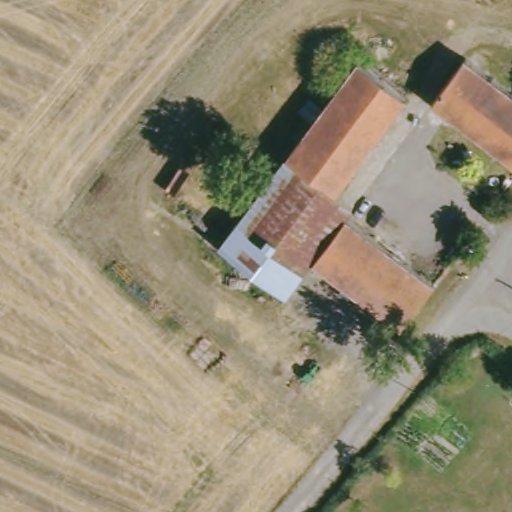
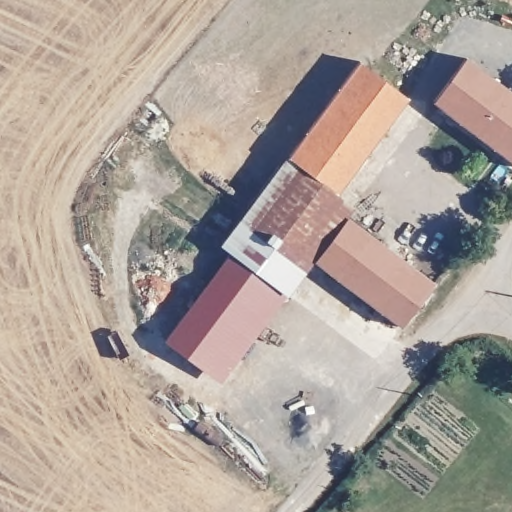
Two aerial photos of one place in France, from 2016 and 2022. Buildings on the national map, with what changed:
unchanged [(354,57),(402,92),(330,189),(282,153),(354,57)]
unchanged [(433,102),(465,58),(512,94),(512,164),(433,102)]
unchanged [(330,189),(348,203),(341,212),(308,257),(281,290),(217,241),(282,153),(330,189)]
unchanged [(428,279),(395,324),(308,257),(341,212),(428,279)]
new [(168,334),(231,251),(281,290),(287,295),(226,377),(168,334)]

